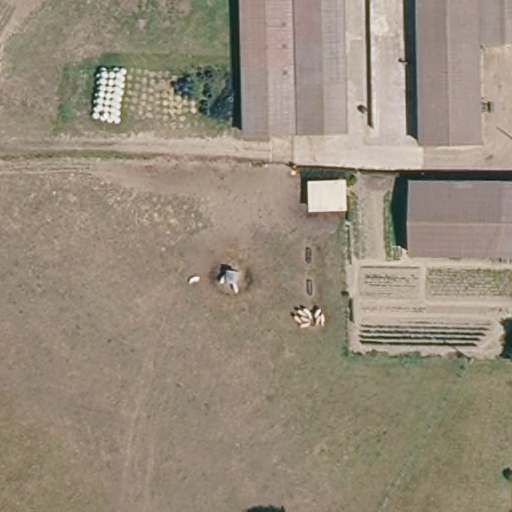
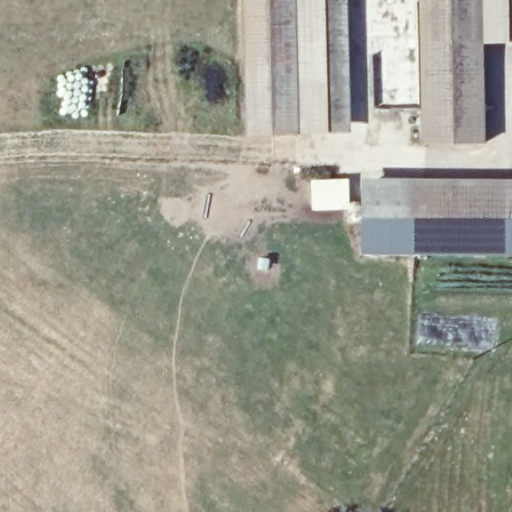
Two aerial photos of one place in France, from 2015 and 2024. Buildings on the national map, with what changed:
unchanged [(347,131),(245,132),(244,0),(346,0),(347,131)]
unchanged [(501,17),(470,18),(472,45),(472,50),(472,148),(416,148),(416,0),(500,0),(501,17)]
unchanged [(500,0),(512,0),(512,45),(499,45),(473,45),(472,45),(470,18),(501,17),(500,0)]
new [(349,178),(350,209),(311,211),(310,179),(349,178)]
new [(362,253),(363,179),(407,178),(407,185),(408,253),(362,253)]
unchanged [(407,185),(512,185),(512,249),(408,253),(407,185)]

